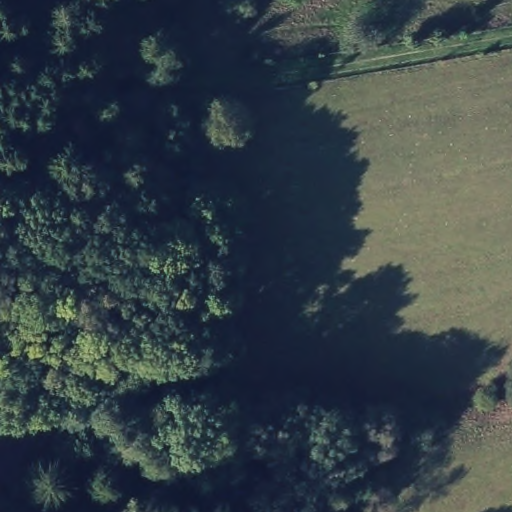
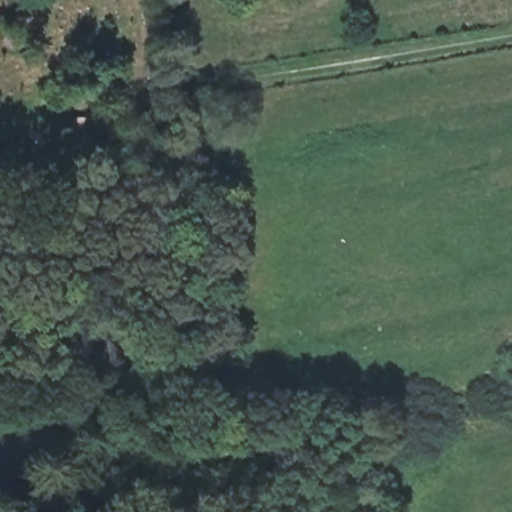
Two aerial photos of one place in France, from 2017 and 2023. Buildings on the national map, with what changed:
[]

